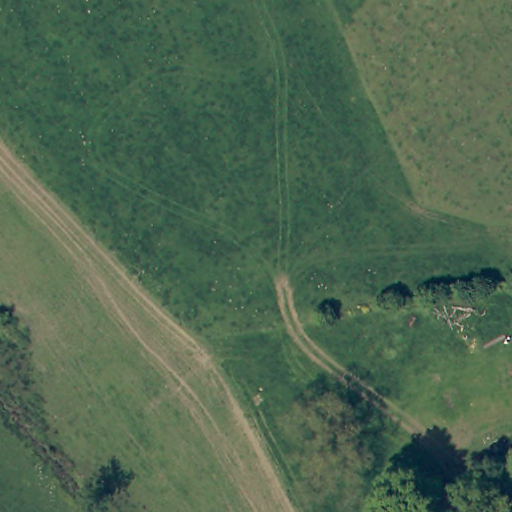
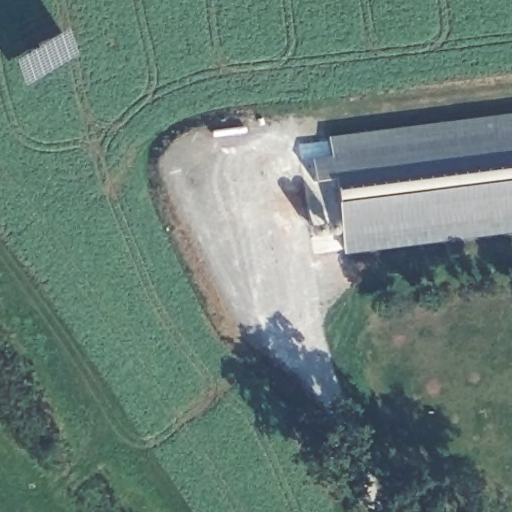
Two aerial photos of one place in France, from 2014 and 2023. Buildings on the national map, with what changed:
new [(343,255),(333,178),(313,181),(310,158),(331,156),(327,136),(512,113),(512,233),(343,255)]

